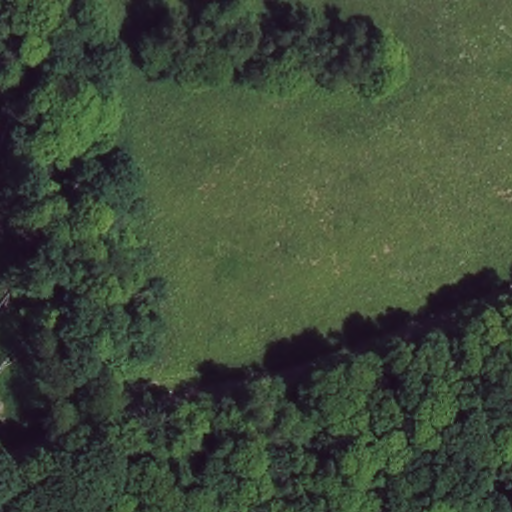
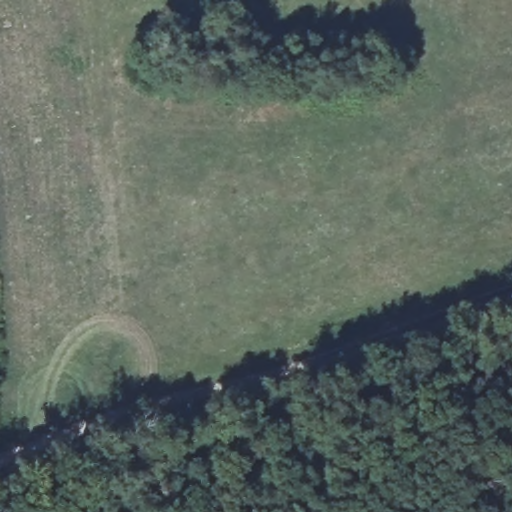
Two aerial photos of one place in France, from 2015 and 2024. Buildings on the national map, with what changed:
[]

